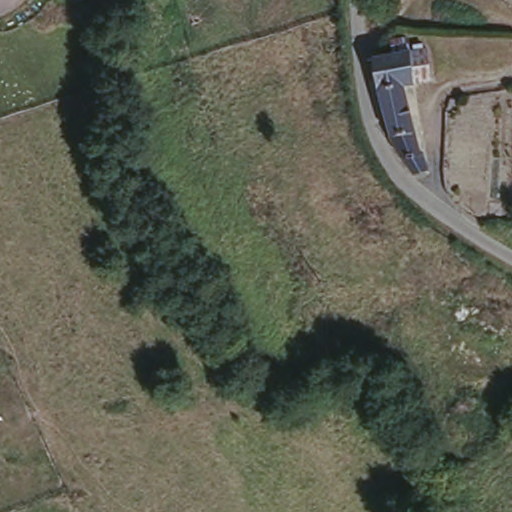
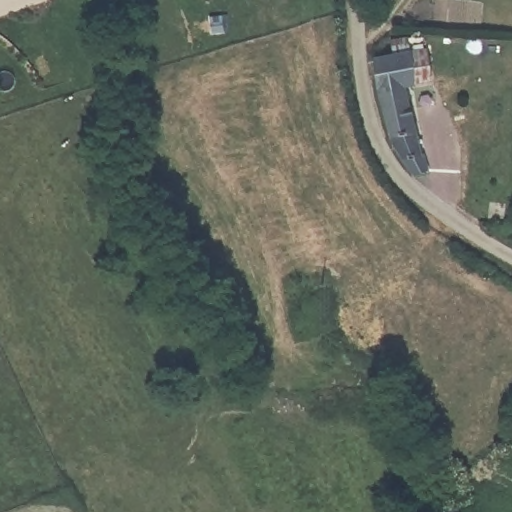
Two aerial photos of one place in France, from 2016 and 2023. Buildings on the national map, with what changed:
unchanged [(417,145),(424,143),(427,157),(417,162),(400,142),(384,90),(381,47),(391,46),(389,31),(405,29),(407,44),(413,44),(412,35),(421,35),(422,44),(427,43),(435,74),(404,77),(417,145)]

